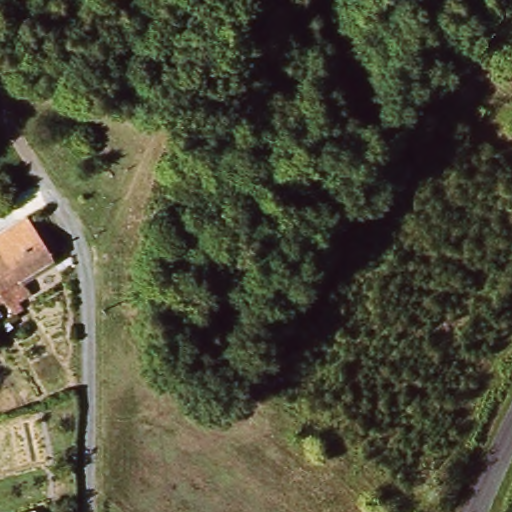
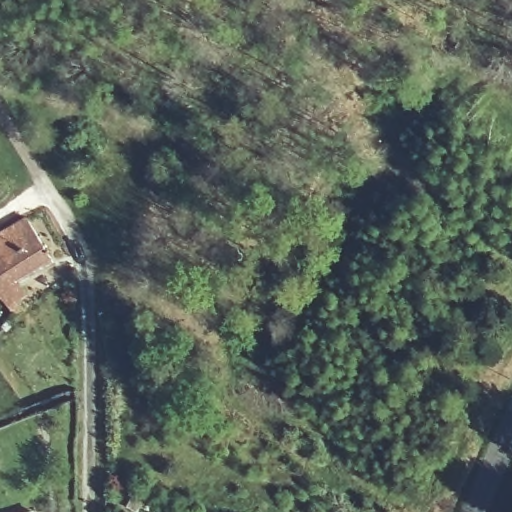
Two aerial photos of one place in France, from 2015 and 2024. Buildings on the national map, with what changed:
unchanged [(0,235),(37,214),(61,258),(0,295),(0,254),(7,250),(0,235)]

